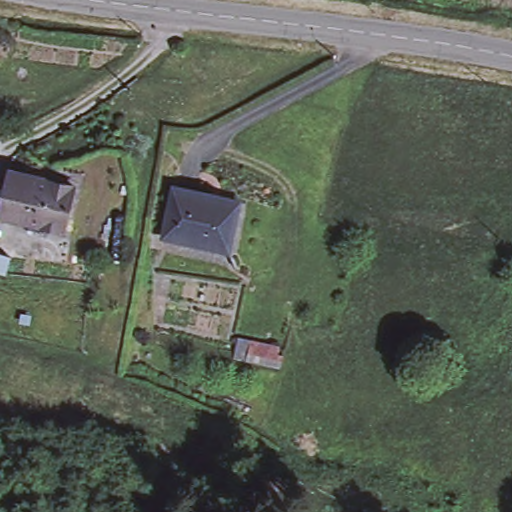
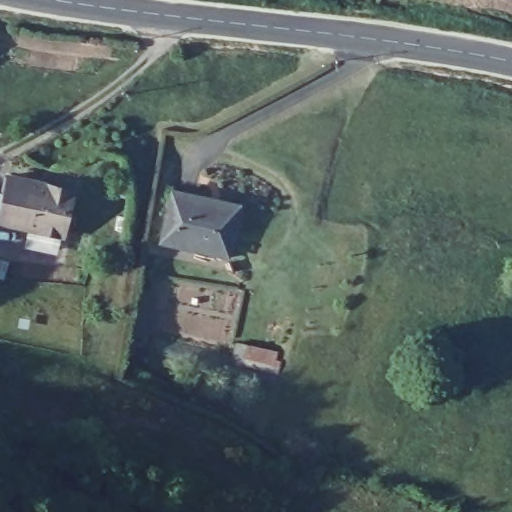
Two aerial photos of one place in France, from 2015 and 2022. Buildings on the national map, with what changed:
unchanged [(72,186),(62,232),(0,218),(10,173),(72,186)]
unchanged [(208,197),(207,203),(233,209),(223,259),(158,244),(169,188),(208,197)]
unchanged [(0,261),(9,263),(4,283),(0,282),(0,261)]
unchanged [(236,359),(238,345),(267,351),(264,371),(229,364),(230,358),(236,359)]

